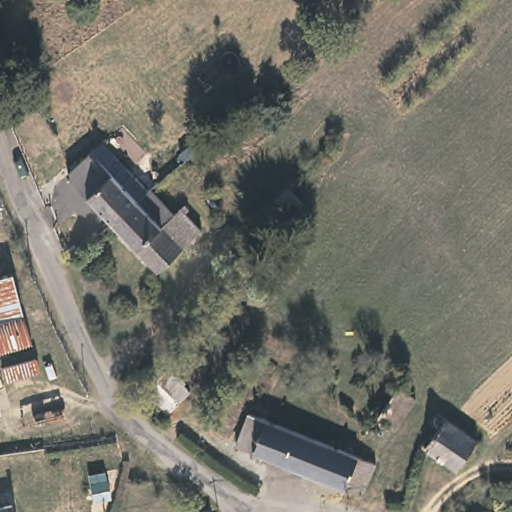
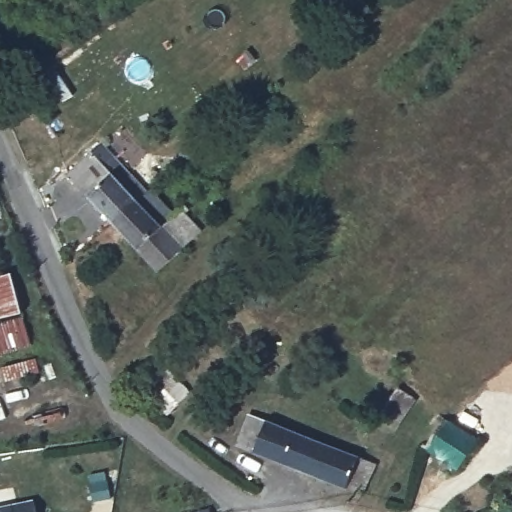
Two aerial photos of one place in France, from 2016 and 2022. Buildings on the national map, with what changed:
unchanged [(114,224),(69,175),(95,154),(103,146),(114,158),(152,196),(114,224)]
unchanged [(178,217),(187,209),(192,215),(188,220),(203,234),(159,273),(114,224),(152,196),(156,193),(178,217)]
unchanged [(291,200),(309,219),(297,230),(279,213),(291,200)]
unchanged [(292,235),(291,236),(283,243),(278,248),(260,230),(273,216),(292,235)]
unchanged [(9,272),(36,343),(0,356),(0,275),(9,272)]
unchanged [(35,358),(39,372),(4,380),(2,367),(35,358)]
unchanged [(402,392),(418,403),(397,433),(379,422),(377,425),(370,420),(373,415),(380,420),(402,392)]
unchanged [(319,444),(308,475),(240,449),(253,418),(319,444)]
unchanged [(476,439),(458,466),(427,445),(447,419),(476,439)]
unchanged [(376,467),(366,497),(308,475),(319,444),(376,467)]
unchanged [(11,505),(12,512),(0,512),(0,508),(11,505)]

